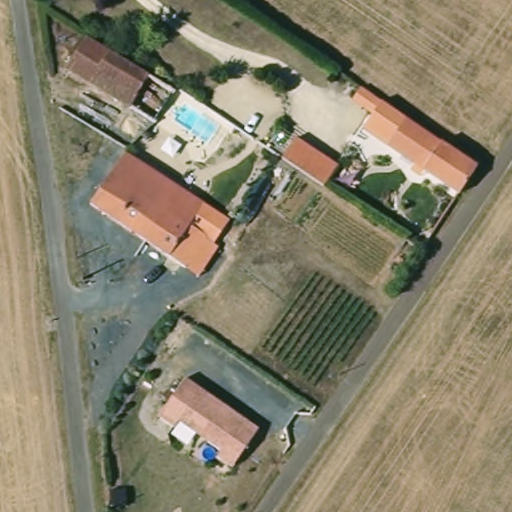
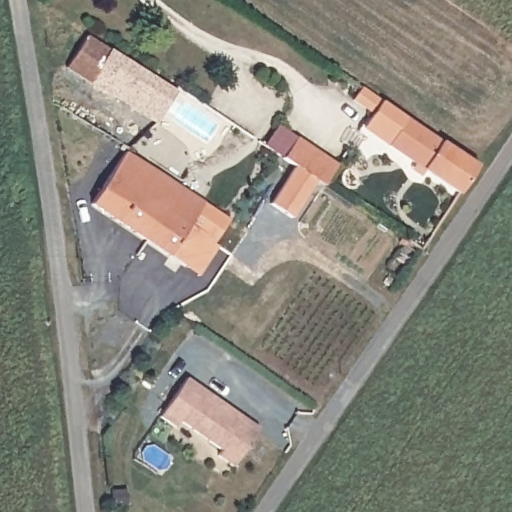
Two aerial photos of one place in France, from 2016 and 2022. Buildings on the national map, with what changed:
unchanged [(60,67),(81,35),(111,56),(100,73),(138,95),(128,111),(60,67)]
unchanged [(138,95),(100,73),(111,56),(172,95),(152,125),(128,111),(138,95)]
unchanged [(361,129),(372,114),(359,106),(366,94),(380,102),(472,165),(454,191),(361,129)]
unchanged [(293,136),(336,165),(323,187),(317,183),(279,157),(293,136)]
unchanged [(87,203),(118,152),(223,221),(208,246),(198,240),(180,265),(87,203)]
unchanged [(186,385),(259,437),(232,474),(217,463),(221,457),(179,428),(175,434),(159,422),(186,385)]

